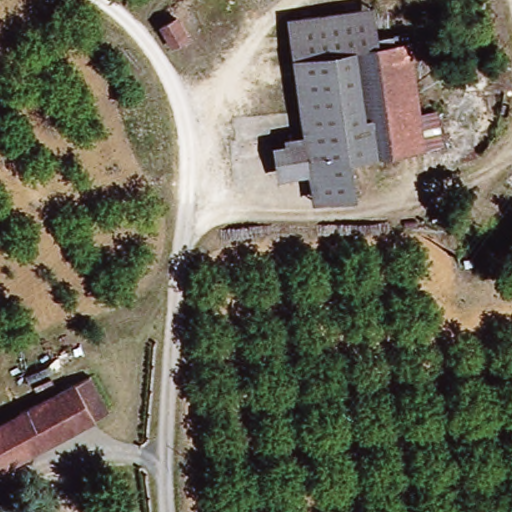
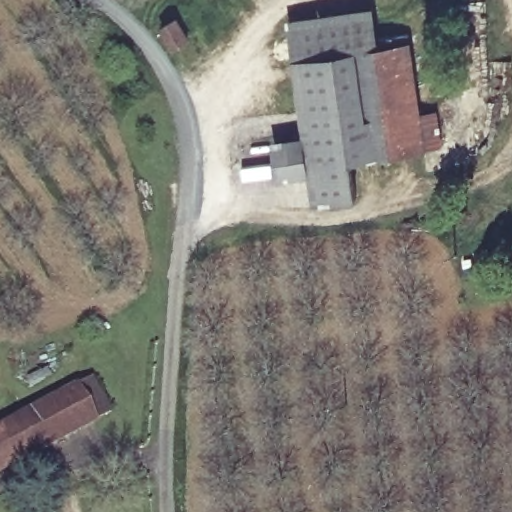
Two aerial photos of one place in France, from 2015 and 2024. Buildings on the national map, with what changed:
unchanged [(295,26),(379,12),(385,51),(298,62),(295,26)]
unchanged [(366,155),(372,196),(311,206),(298,62),(385,51),(432,45),(446,142),(366,155)]
unchanged [(110,413),(0,468),(0,423),(92,378),(110,413)]

